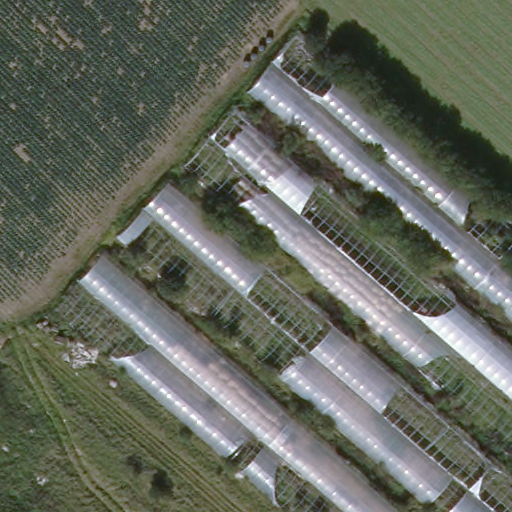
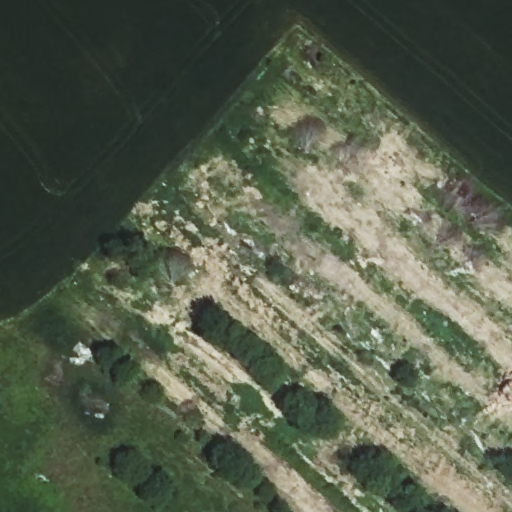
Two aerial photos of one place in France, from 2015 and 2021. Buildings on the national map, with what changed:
demolished [(512,314),(251,88),(300,33),(512,214),(512,314)]
demolished [(512,446),(186,166),(236,104),(512,346),(512,446)]
demolished [(512,512),(442,512),(123,235),(169,177),(512,474),(512,512)]
demolished [(407,512),(291,512),(54,309),(103,250),(407,512)]
demolished [(255,512),(187,512),(11,364),(41,329),(255,512)]
demolished [(148,512),(80,512),(28,468),(58,434),(148,512)]
demolished [(49,512),(0,512),(0,503),(16,483),(49,512)]

